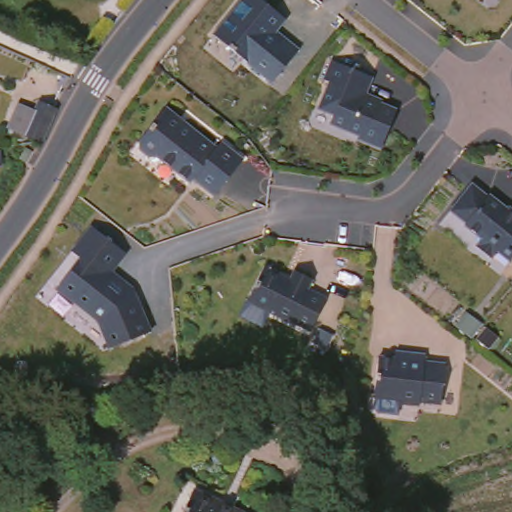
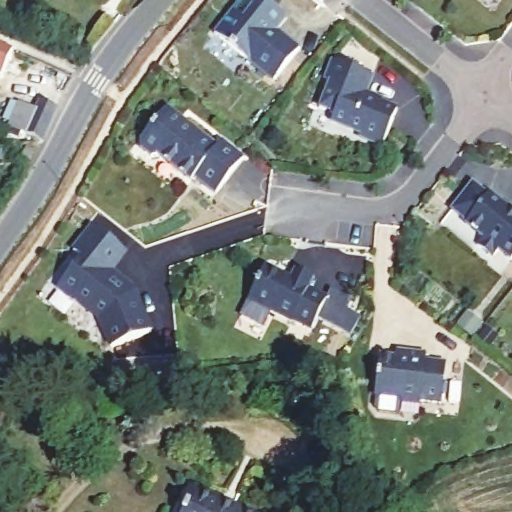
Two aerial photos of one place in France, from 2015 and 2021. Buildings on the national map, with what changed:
unchanged [(276,38),(279,34),(294,46),(267,79),(209,32),(234,0),(260,0),(280,16),(267,31),(276,38)]
unchanged [(372,74),(364,95),(397,108),(383,143),(360,134),(361,130),(332,119),(335,112),(320,106),(330,79),(325,77),(332,59),(372,74)]
unchanged [(19,111),(35,119),(40,109),(59,117),(42,151),(8,135),(19,111)]
unchanged [(165,109),(215,149),(219,143),(241,160),(212,197),(190,179),(187,184),(155,158),(149,159),(137,149),(137,143),(165,109)]
unchanged [(498,250),(492,258),(476,245),(483,238),(465,224),(467,222),(452,210),(472,184),(488,196),(490,194),(512,212),(512,259),(511,260),(498,250)]
unchanged [(123,252),(107,273),(128,289),(130,289),(147,332),(108,347),(97,319),(72,300),(72,302),(55,288),(79,259),(71,252),(91,227),(123,252)]
unchanged [(302,288),(321,297),(305,329),(286,320),(285,321),(242,299),(259,265),(285,278),(290,269),(308,278),(302,288)]
unchanged [(313,324),(330,334),(319,351),(302,340),(313,324)]
unchanged [(423,364),(422,370),(443,373),(439,413),(418,410),(417,413),(398,411),(398,408),(372,405),(377,366),(392,368),(393,360),(423,364)]
unchanged [(192,499),(222,512),(185,512),(192,499)]

